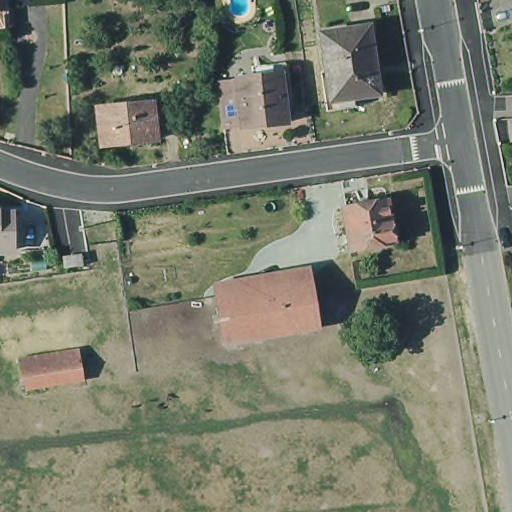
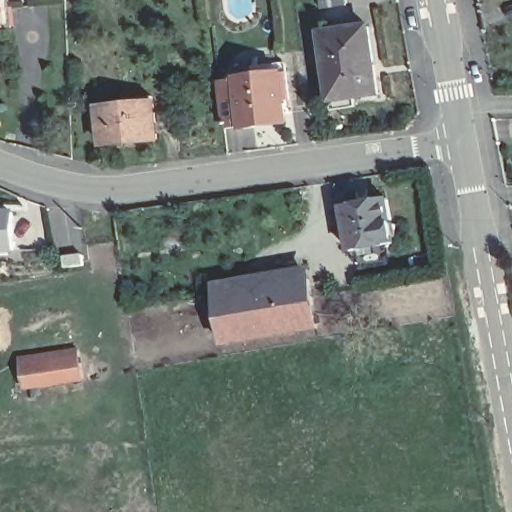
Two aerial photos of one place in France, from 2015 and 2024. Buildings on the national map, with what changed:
unchanged [(12,13),(0,14),(0,0),(11,0),(12,13)]
unchanged [(356,106),(329,110),(324,71),(328,71),(323,33),(370,27),(379,94),(354,97),(356,106)]
unchanged [(221,82),(240,80),(239,78),(282,73),(288,123),(245,128),(244,126),(226,128),(221,82)]
unchanged [(154,107),(158,144),(103,149),(99,113),(154,107)]
unchanged [(347,254),(339,209),(384,202),(388,227),(394,227),(395,239),(391,241),(392,247),(347,254)]
unchanged [(8,216),(9,253),(0,253),(0,216),(8,216)]
unchanged [(244,283),(310,273),(314,297),(248,307),(244,283)]
unchanged [(253,333),(226,338),(218,288),(244,283),(248,307),(253,333)]
unchanged [(314,297),(318,321),(253,333),(248,307),(314,297)]
unchanged [(81,353),(85,382),(27,393),(21,362),(81,353)]

